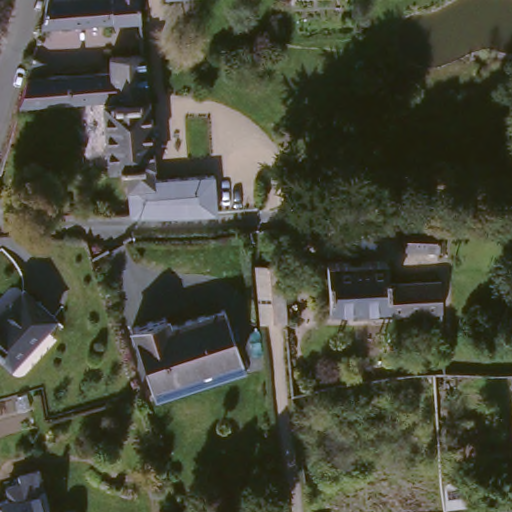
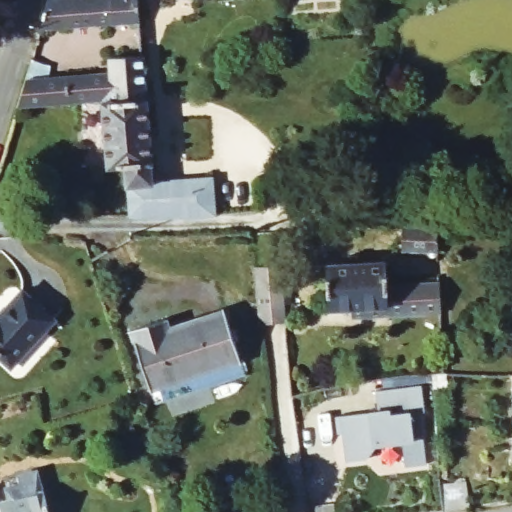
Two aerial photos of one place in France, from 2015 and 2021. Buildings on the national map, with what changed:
unchanged [(144,2),(144,17),(45,24),(51,0),(150,0),(151,2),(144,2)]
unchanged [(157,163),(156,163),(158,183),(217,179),(217,215),(134,217),(129,166),(113,167),(107,102),(108,101),(108,100),(23,106),(32,80),(115,73),(114,57),(147,55),(151,98),(152,97),(157,163)]
unchanged [(437,251),(401,250),(402,228),(437,229),(437,251)]
unchanged [(392,274),(444,271),(446,302),(357,308),(356,297),(334,299),(331,255),(354,254),(363,253),(391,251),(392,274)]
unchanged [(269,320),(246,322),(241,266),(264,263),(268,263),(273,320),(269,320)]
unchanged [(27,287),(59,315),(16,363),(0,349),(0,312),(3,314),(27,287)]
unchanged [(137,319),(170,308),(174,318),(229,300),(250,365),(160,393),(137,319)]
demolished [(412,390),(412,378),(447,377),(448,389),(412,390)]
new [(337,432),(335,415),(368,410),(376,409),(373,389),(420,383),(424,411),(421,410),(428,462),(404,465),(403,443),(373,446),(369,459),(346,461),(342,432),(337,432)]
unchanged [(10,483),(24,479),(22,471),(42,465),(55,512),(0,512),(0,499),(14,495),(10,483)]
unchanged [(439,484),(454,482),(466,481),(469,509),(443,512),(439,484)]

